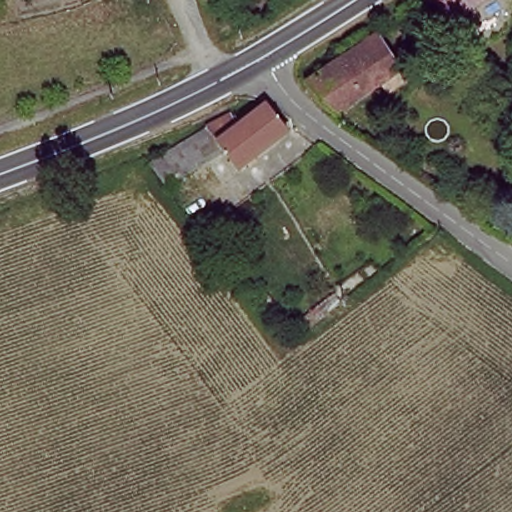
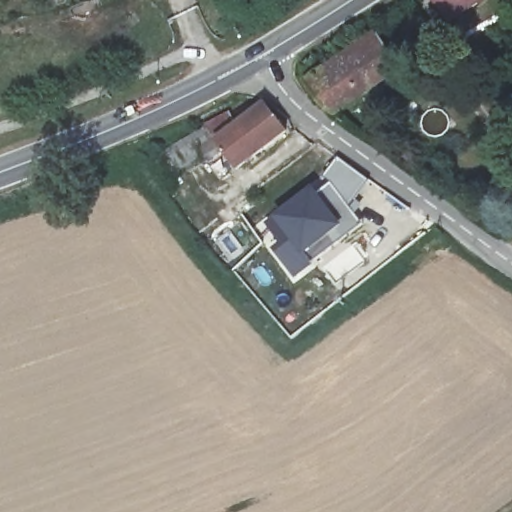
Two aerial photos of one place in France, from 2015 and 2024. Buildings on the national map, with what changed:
unchanged [(430,0),(487,0),(448,26),(430,0)]
unchanged [(404,77),(343,117),(320,107),(310,86),(380,40),(404,77)]
unchanged [(221,130),(242,120),(250,131),(283,111),(286,114),(301,137),(249,172),(237,155),(221,130)]
unchanged [(182,191),(171,165),(221,130),(237,155),(182,191)]
new [(339,157),(369,180),(350,206),(327,182),(323,178),(339,157)]
new [(267,245),(280,234),(267,215),(311,181),(318,190),(327,182),(350,206),(362,223),(313,264),(292,280),(267,245)]

